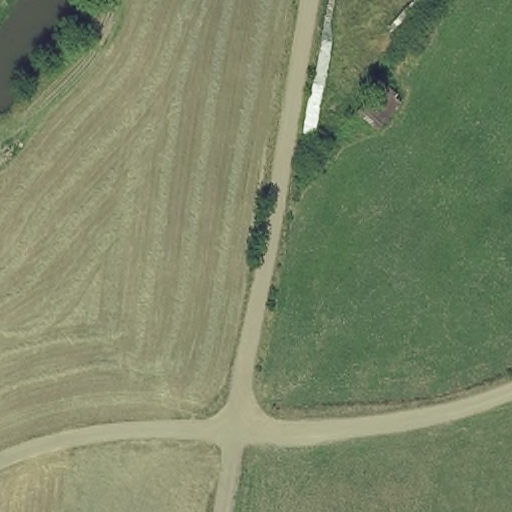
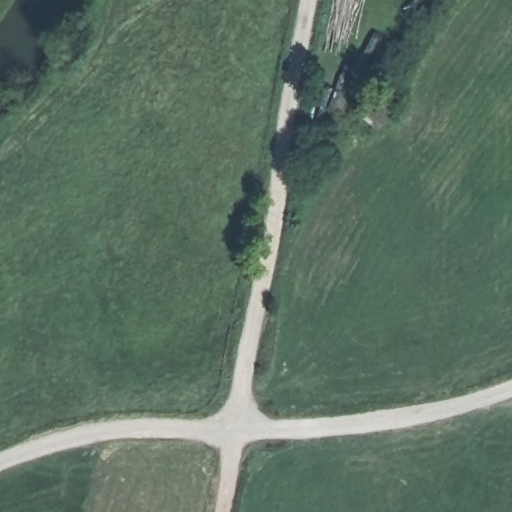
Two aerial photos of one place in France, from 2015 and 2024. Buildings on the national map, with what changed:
unchanged [(358,113),(390,81),(413,103),(382,134),(358,113)]

